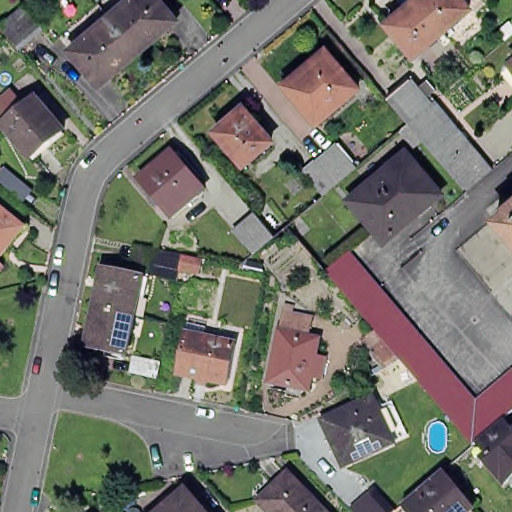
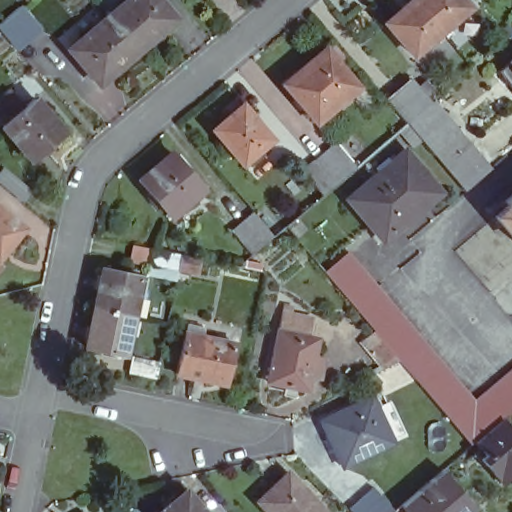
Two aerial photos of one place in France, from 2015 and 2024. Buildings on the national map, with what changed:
unchanged [(28,1),(27,0),(30,0),(28,1)]
unchanged [(130,0),(160,0),(176,19),(137,52),(109,18),(130,0)]
unchanged [(422,0),(456,0),(468,15),(441,37),(415,6),(422,0)]
unchanged [(441,37),(413,60),(388,30),(415,6),(441,37)]
unchanged [(20,8),(40,30),(17,49),(0,29),(0,24),(20,8)]
unchanged [(137,52),(99,84),(71,50),(109,18),(137,52)]
unchanged [(358,94),(317,128),(285,90),(326,55),(358,94)]
unchanged [(395,68),(425,105),(402,124),(371,87),(395,68)]
unchanged [(69,134),(38,160),(8,126),(39,100),(69,134)]
unchanged [(425,105),(429,100),(488,170),(460,194),(402,124),(425,105)]
unchanged [(272,140),(244,164),(216,130),(243,106),(272,140)]
unchanged [(306,174),(318,163),(339,145),(358,165),(336,185),(324,195),(306,174)]
unchanged [(343,197),(407,150),(445,193),(384,246),(343,197)]
unchanged [(198,191),(167,216),(137,180),(167,155),(198,191)]
unchanged [(24,223),(0,253),(0,204),(24,223)]
unchanged [(512,208),(512,230),(502,217),(512,208)]
unchanged [(274,237),(253,255),(235,232),(255,215),(274,237)]
unchanged [(143,275),(145,263),(149,248),(178,254),(195,258),(192,273),(174,270),(172,281),(143,275)]
unchanged [(503,422),(476,445),(474,447),(457,427),(405,366),(392,372),(376,354),(387,345),(356,308),(346,296),(339,287),(326,273),(350,253),(369,275),(380,288),(476,402),(512,373),(512,415),(503,422)]
unchanged [(144,277),(140,298),(134,297),(122,355),(83,346),(99,268),(138,276),(144,277)]
unchanged [(303,317),(307,322),(304,338),(312,340),(310,355),(320,357),(316,377),(306,375),(303,390),(264,382),(279,312),(303,317)]
unchanged [(236,350),(228,389),(177,378),(186,339),(236,350)]
unchanged [(127,372),(130,357),(155,362),(152,378),(127,372)]
unchanged [(394,444),(344,467),(323,422),(374,399),(394,444)]
unchanged [(512,432),(512,480),(505,486),(484,460),(487,457),(476,445),(503,422),(512,432)]
unchanged [(466,512),(403,512),(398,506),(440,471),(471,508),(466,512)]
unchanged [(268,512),(260,503),(288,475),(325,512),(268,512)]
unchanged [(354,512),(352,507),(373,485),(395,512),(354,512)]
unchanged [(198,512),(160,512),(183,493),(198,512)]

